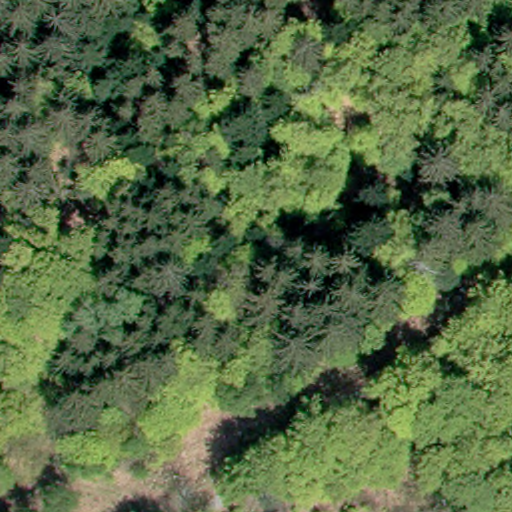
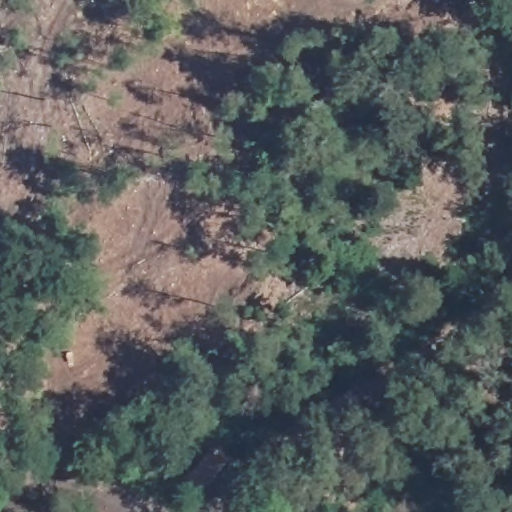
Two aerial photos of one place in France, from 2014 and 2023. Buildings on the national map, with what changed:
[]

